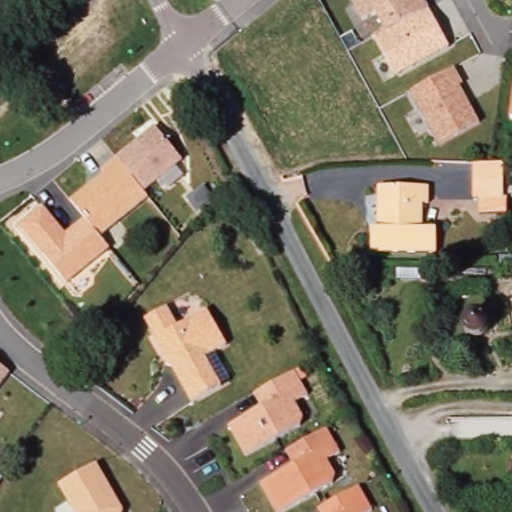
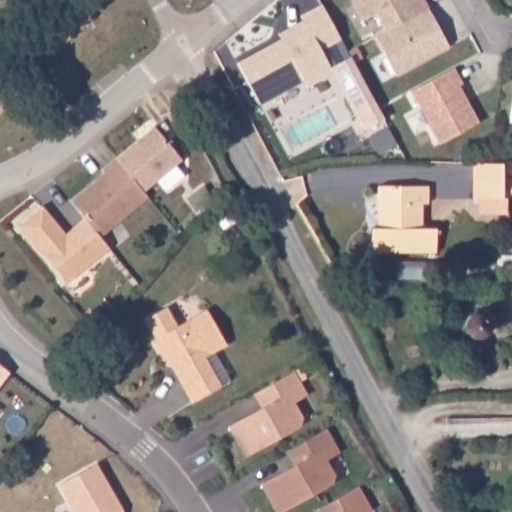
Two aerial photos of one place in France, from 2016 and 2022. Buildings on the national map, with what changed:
unchanged [(450,46),(397,76),(376,34),(386,28),(377,14),(367,20),(355,0),(426,0),(450,46)]
new [(342,90),(333,74),(308,87),(304,80),(260,105),(238,63),(282,39),(279,34),(304,20),(301,16),(322,4),(341,39),(322,50),(331,68),(351,57),(363,79),(384,118),(364,130),(342,90)]
unchanged [(466,82),(461,86),(481,122),(440,144),(410,91),(456,67),(466,82)]
unchanged [(185,160),(147,192),(151,197),(101,239),(110,251),(67,285),(21,226),(46,205),(67,232),(84,219),(70,202),(104,174),(102,168),(156,125),(185,160)]
unchanged [(474,163),(503,164),(503,199),(508,199),(507,215),(479,214),(479,199),(473,199),(474,163)]
unchanged [(377,228),(383,228),(384,186),(434,186),(434,204),(428,204),(428,229),(442,229),(442,253),(377,252),(377,228)]
unchanged [(166,365),(168,359),(154,334),(146,319),(167,307),(178,326),(191,319),(207,310),(227,345),(214,352),(230,380),(221,385),(222,386),(192,403),(180,381),(172,367),(166,365)]
unchanged [(464,326),(466,319),(471,313),(477,311),(484,313),(490,317),(492,324),(491,332),(484,338),(477,339),(470,337),(465,330),(464,326)]
unchanged [(0,388),(0,363),(11,373),(0,388)]
unchanged [(308,395),(295,403),(303,417),(301,426),(246,457),(229,426),(262,408),(255,394),(261,390),(295,371),(308,395)]
unchanged [(340,453),(327,460),(336,475),(333,484),(282,512),(277,512),(261,484),(295,465),(287,451),(293,448),(326,430),(327,429),(340,453)]
unchanged [(76,512),(69,500),(60,485),(97,463),(121,507),(124,510),(123,512),(76,512)]
unchanged [(326,505),(359,486),(373,510),(369,512),(322,512),(320,509),(326,505)]

